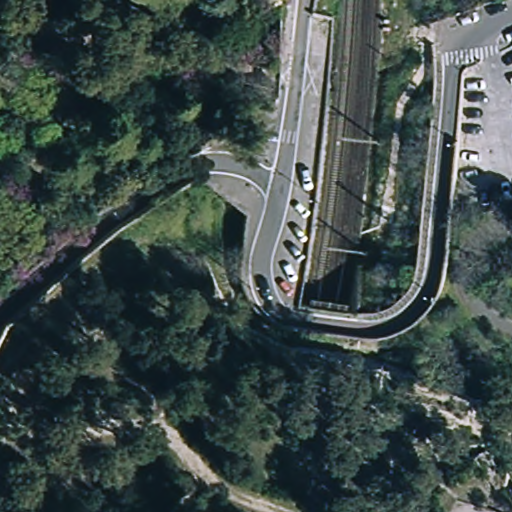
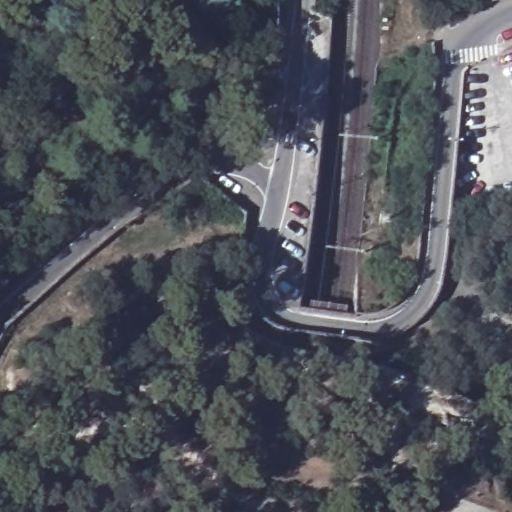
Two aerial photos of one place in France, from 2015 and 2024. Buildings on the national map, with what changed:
[]

